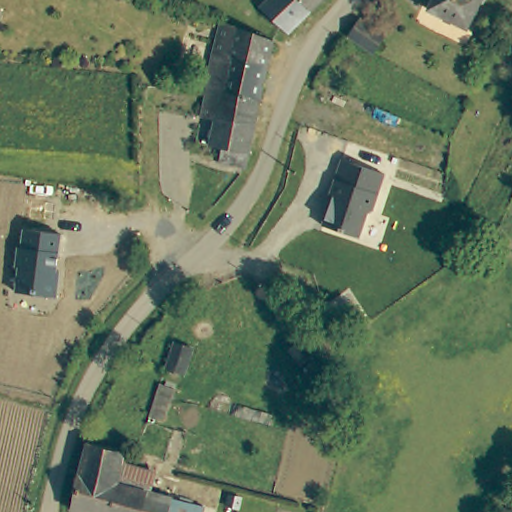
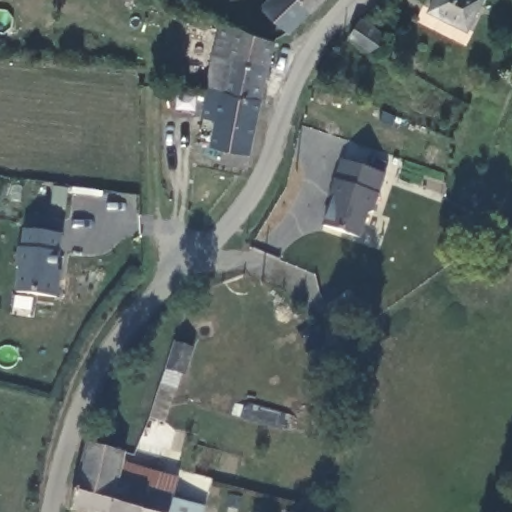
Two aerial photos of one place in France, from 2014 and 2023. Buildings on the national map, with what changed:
unchanged [(301,0),(314,10),(292,31),(262,9),(271,0),(301,0)]
unchanged [(301,0),(324,0),(314,10),(301,0)]
unchanged [(478,0),(464,29),(426,11),(431,0),(478,0)]
unchanged [(359,21),(383,37),(372,53),(347,36),(359,21)]
unchanged [(223,23),(277,39),(262,99),(210,87),(223,23)]
unchanged [(204,117),(210,87),(262,99),(249,167),(222,162),(224,148),(199,144),(204,117)]
unchanged [(374,212),(369,211),(361,238),(324,227),(334,198),(331,197),(343,161),(387,174),(374,212)]
unchanged [(55,272),(59,273),(55,299),(14,293),(23,230),(60,237),(55,272)]
unchanged [(180,375),(161,368),(166,356),(170,343),(189,350),(180,375)]
unchanged [(169,390),(160,417),(146,412),(155,385),(169,390)]
unchanged [(86,442),(123,453),(119,465),(107,512),(70,512),(86,442)]
unchanged [(119,465),(150,472),(145,491),(169,498),(168,500),(199,511),(199,512),(107,512),(119,465)]

